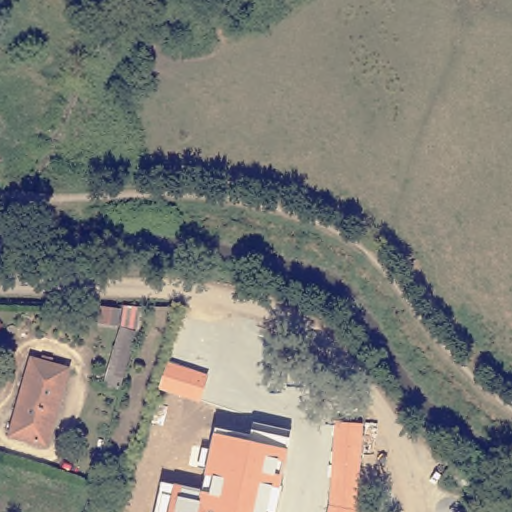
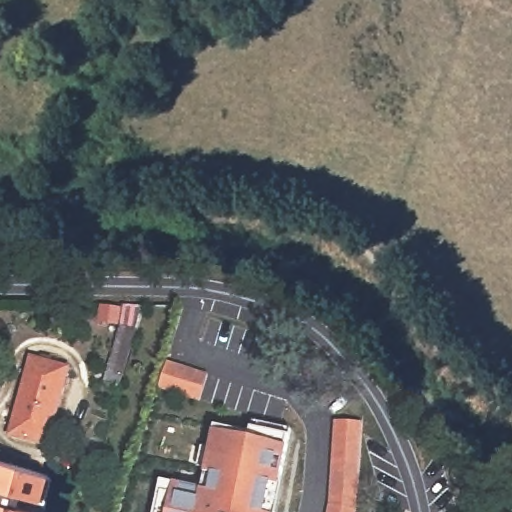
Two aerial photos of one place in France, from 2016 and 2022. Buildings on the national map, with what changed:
unchanged [(119,392),(105,387),(129,308),(143,309),(119,392)]
unchanged [(77,368),(56,447),(18,437),(40,358),(77,368)]
unchanged [(200,403),(158,389),(166,363),(208,375),(200,403)]
unchanged [(330,505),(335,421),(363,423),(356,509),(355,512),(328,512),(330,505)]
unchanged [(290,437),(286,448),(272,512),(154,512),(161,482),(175,485),(199,490),(204,474),(213,433),(214,426),(249,433),(250,428),(290,437)]
new [(34,498),(13,493),(10,503),(31,511),(31,512),(0,512),(0,460),(41,472),(34,498)]

